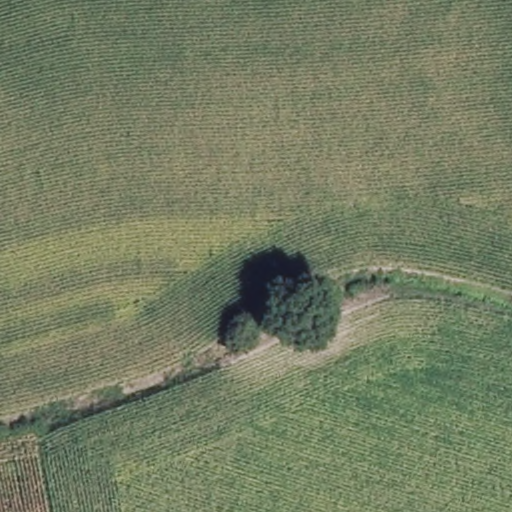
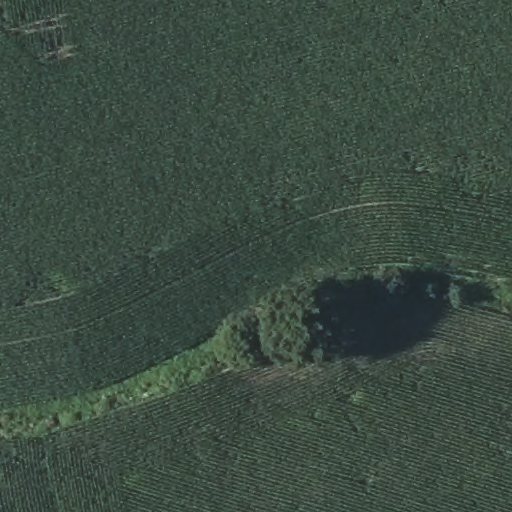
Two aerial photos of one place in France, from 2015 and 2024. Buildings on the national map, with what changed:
[]

